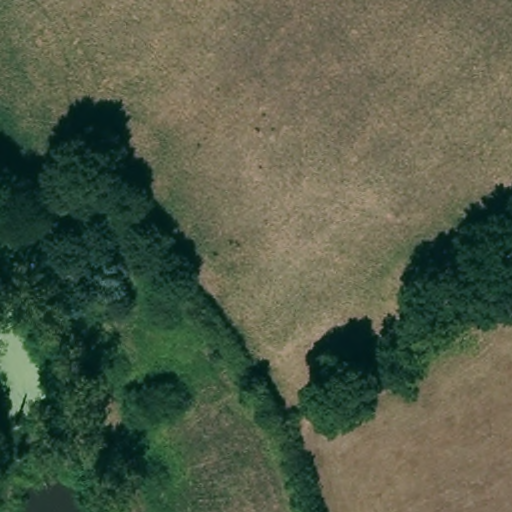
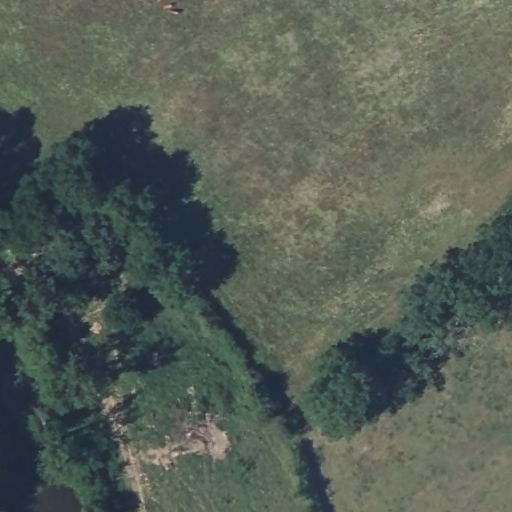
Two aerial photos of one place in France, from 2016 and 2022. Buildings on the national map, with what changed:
unchanged [(117,196),(69,229),(47,197),(95,164),(117,196)]

